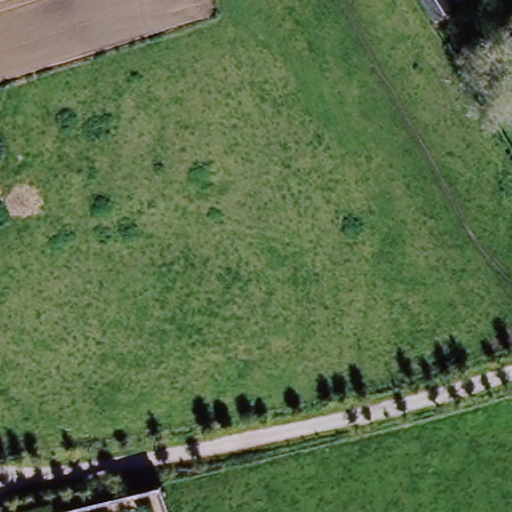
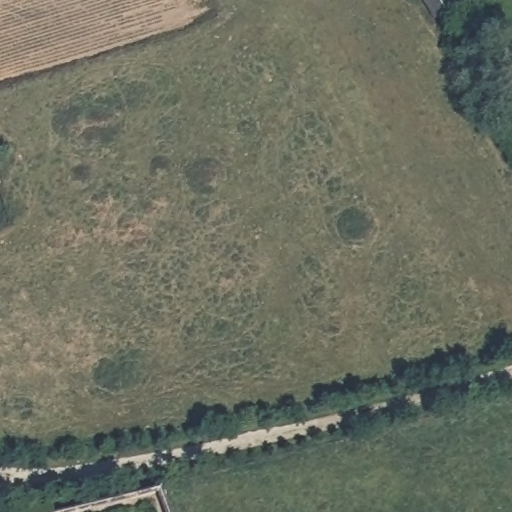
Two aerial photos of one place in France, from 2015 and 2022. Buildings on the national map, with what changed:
unchanged [(429,30),(418,0),(443,0),(451,21),(429,30)]

